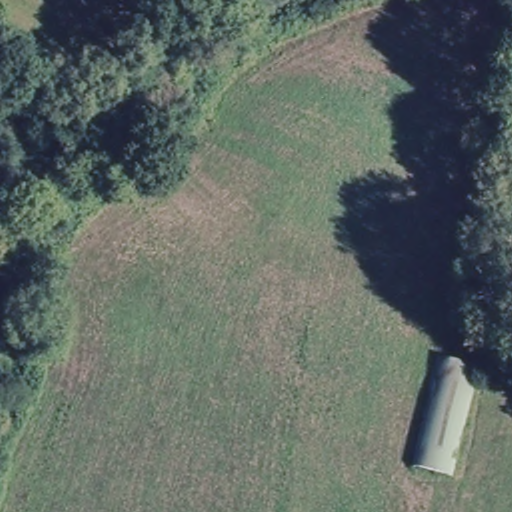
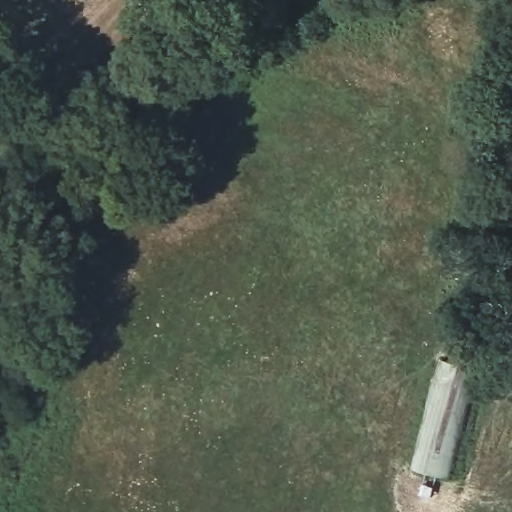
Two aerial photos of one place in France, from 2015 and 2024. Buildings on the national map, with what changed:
unchanged [(435,353),(481,363),(457,474),(410,464),(435,353)]

